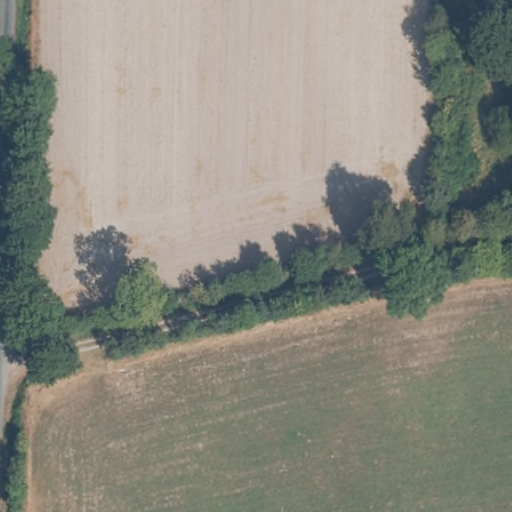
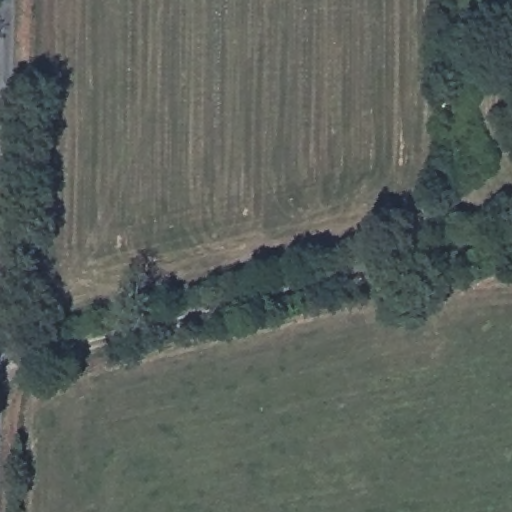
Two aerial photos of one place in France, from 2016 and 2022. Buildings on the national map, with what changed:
unchanged [(420,306),(408,304),(409,288),(422,289),(420,306)]

